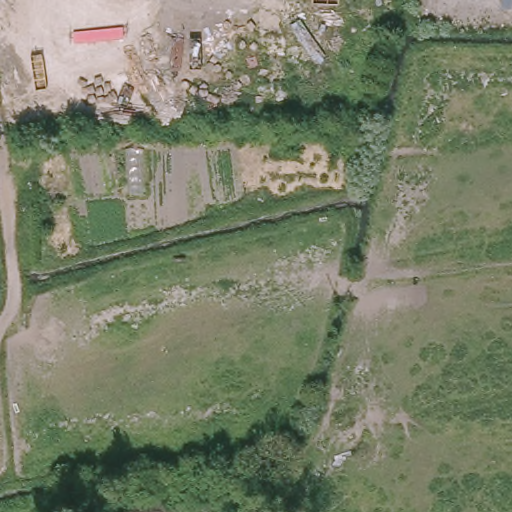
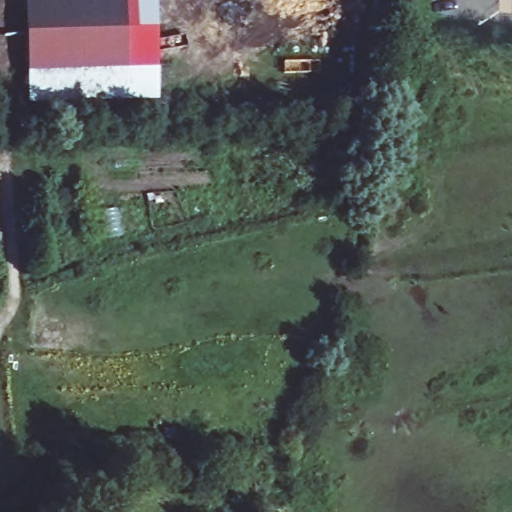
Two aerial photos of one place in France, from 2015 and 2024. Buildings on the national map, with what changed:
new [(26,105),(23,0),(155,0),(157,102),(26,105)]
unchanged [(501,1),(501,0),(512,0),(512,1),(501,1)]

